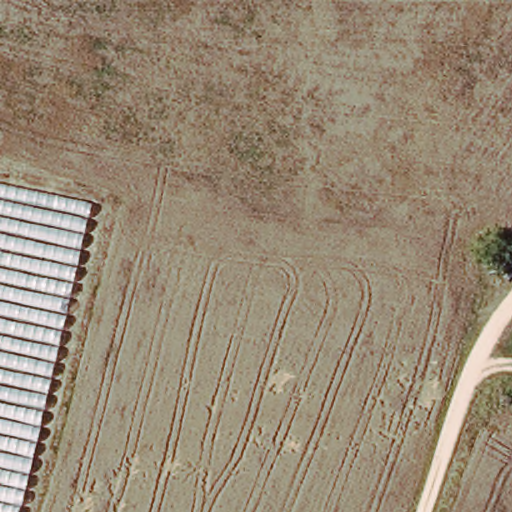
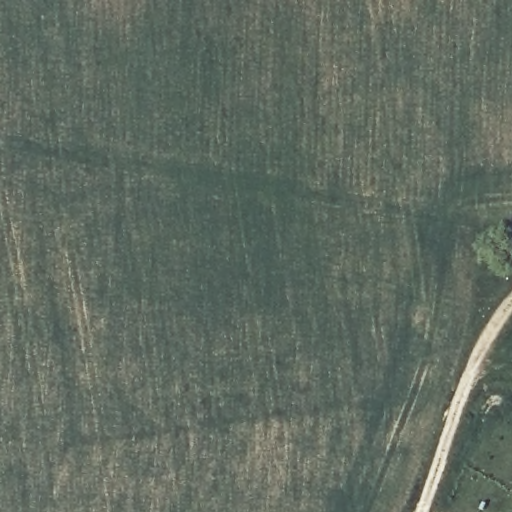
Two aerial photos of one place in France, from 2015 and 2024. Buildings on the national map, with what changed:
demolished [(29,499),(24,512),(0,512),(0,185),(94,202),(29,499)]

